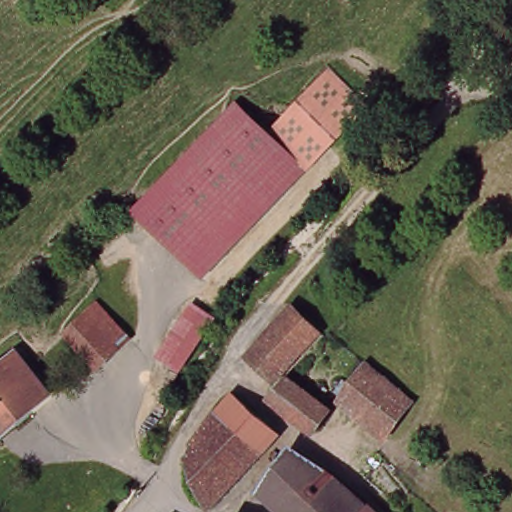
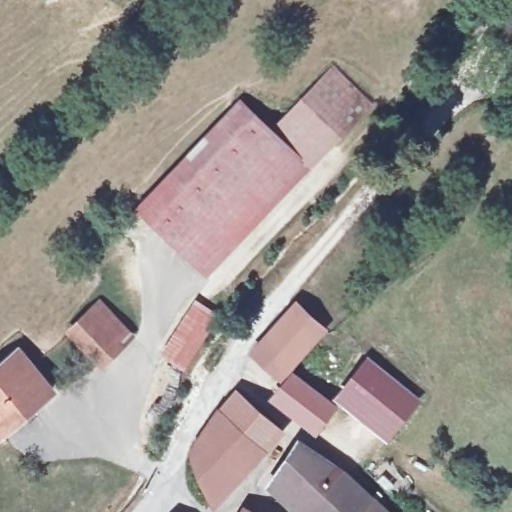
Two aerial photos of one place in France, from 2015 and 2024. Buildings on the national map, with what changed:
unchanged [(330,66),(372,105),(209,275),(203,270),(306,164),(272,133),(330,66)]
unchanged [(306,164),(203,270),(135,206),(237,100),(306,164)]
unchanged [(323,328),(280,372),(252,348),(295,298),(323,328)]
unchanged [(130,334),(97,364),(69,330),(99,301),(130,334)]
unchanged [(190,301),(212,310),(197,329),(190,346),(182,366),(161,354),(175,329),(190,301)]
unchanged [(52,384),(5,430),(0,425),(0,366),(20,349),(52,384)]
unchanged [(420,394),(395,433),(347,399),(373,368),(377,363),(420,394)]
unchanged [(300,379),(340,409),(320,433),(317,430),(290,411),(274,392),(295,373),(300,379)]
unchanged [(241,422),(225,404),(240,386),(278,423),(265,444),(241,422)]
unchanged [(224,403),(225,404),(241,422),(265,444),(213,509),(191,484),(185,452),(200,447),(195,436),(224,403)]
unchanged [(322,458),(350,484),(367,498),(353,512),(283,512),(257,488),(294,446),(322,458)]

